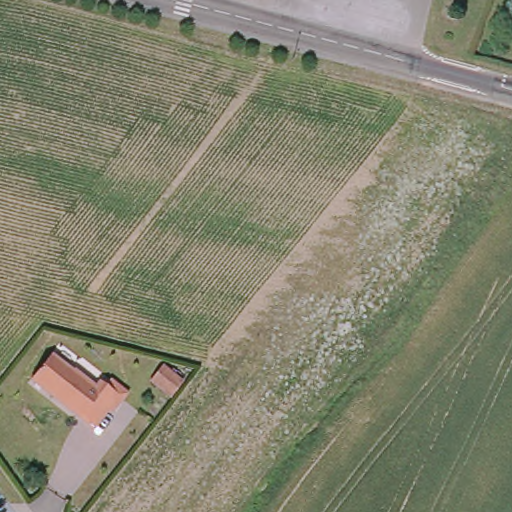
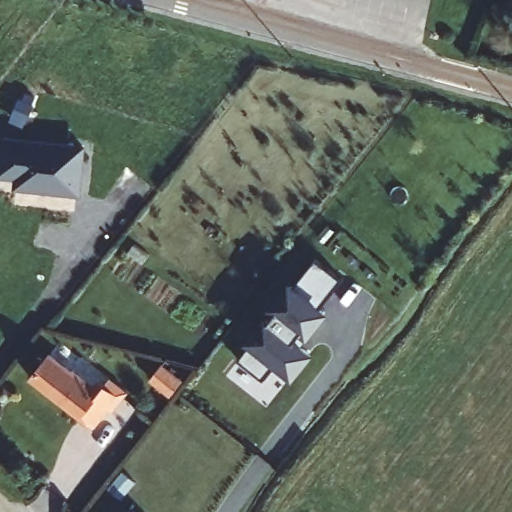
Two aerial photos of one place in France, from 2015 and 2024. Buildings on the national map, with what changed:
new [(78,194),(25,191),(15,179),(5,181),(0,174),(4,137),(87,145),(78,194)]
new [(343,280),(321,306),(328,312),(308,338),(301,334),(297,340),(314,354),(294,380),(274,364),(263,380),(238,361),(249,348),(244,344),(266,315),(270,319),(274,313),(268,308),(291,281),(295,285),(316,259),(343,280)]
unchanged [(48,356),(100,397),(113,381),(129,393),(111,416),(106,411),(93,427),(31,378),(48,356)]
unchanged [(170,368),(191,384),(179,399),(159,382),(170,368)]

